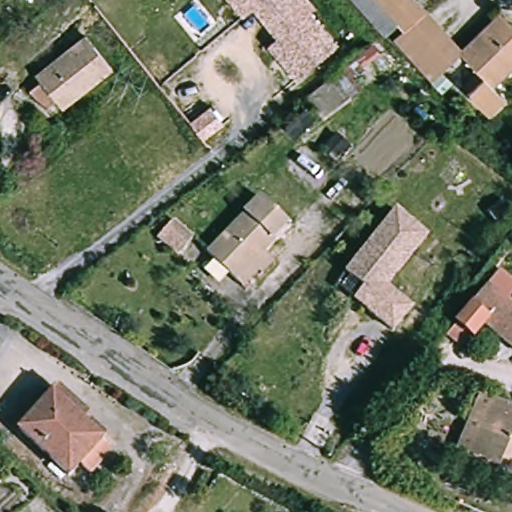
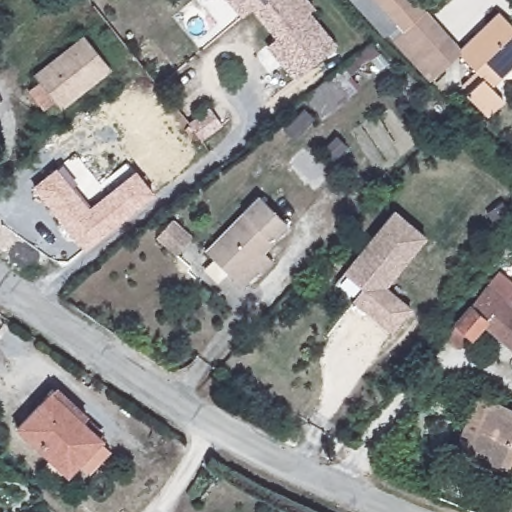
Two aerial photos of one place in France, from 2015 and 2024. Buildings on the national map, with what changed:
unchanged [(316,12),(310,16),(318,26),(337,51),(295,84),(276,60),(267,48),(277,41),(253,10),(243,18),(229,0),(307,0),(316,12)]
unchanged [(354,0),(415,0),(430,16),(410,36),(399,24),(388,35),(354,0)]
unchanged [(505,98),(489,114),(469,93),(482,80),(455,53),(461,48),(499,12),(512,25),(512,69),(494,86),(505,98)]
unchanged [(461,48),(455,53),(431,77),(401,45),(410,36),(430,16),(461,48)]
unchanged [(26,86),(39,77),(33,70),(86,33),(111,70),(59,107),(52,97),(39,106),(26,86)]
unchanged [(362,67),(350,76),(360,90),(321,120),(305,98),(354,59),(362,67)]
new [(211,109),(226,128),(206,143),(191,125),(211,109)]
new [(135,169),(155,194),(85,251),(32,186),(57,167),(88,206),(135,169)]
unchanged [(234,274),(206,245),(262,193),(290,222),(263,247),(275,259),(260,273),(255,268),(241,281),(234,274)]
unchanged [(345,264),(400,206),(430,234),(385,281),(409,304),(388,326),(363,302),(334,275),(345,264)]
unchanged [(193,238),(175,257),(154,238),(173,220),(193,238)]
unchanged [(467,342),(449,326),(481,291),(492,280),(512,298),(512,359),(480,328),(467,342)]
unchanged [(101,448),(110,457),(91,477),(81,467),(72,477),(17,425),(43,397),(54,385),(88,416),(83,422),(105,443),(101,448)]
unchanged [(457,451),(479,397),(512,411),(512,473),(509,472),(457,451)]

